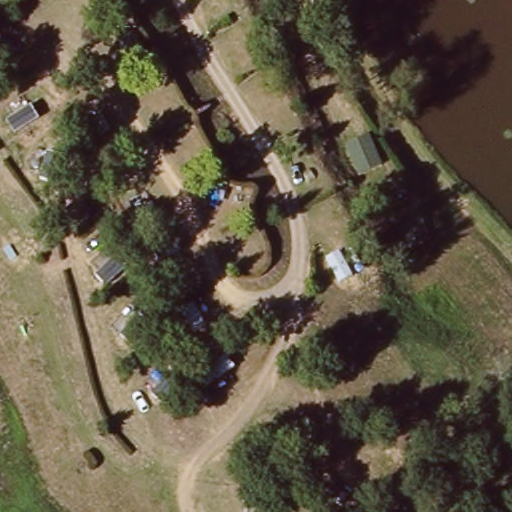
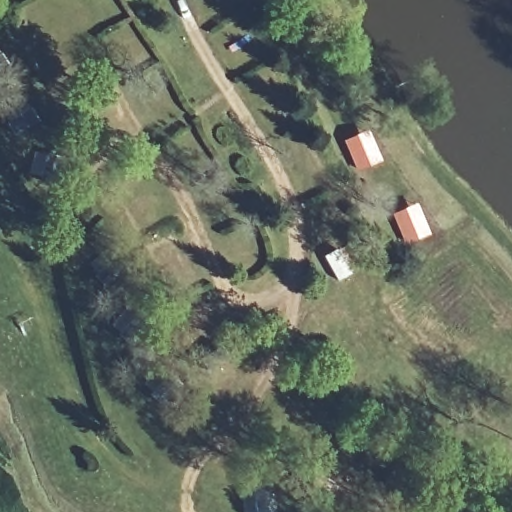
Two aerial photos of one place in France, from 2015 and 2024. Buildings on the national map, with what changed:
unchanged [(358,162),(349,142),(345,134),(366,125),(369,132),(378,154),(358,162)]
unchanged [(412,243),(404,247),(395,226),(392,217),(406,212),(413,209),(416,217),(424,237),(412,243)]

